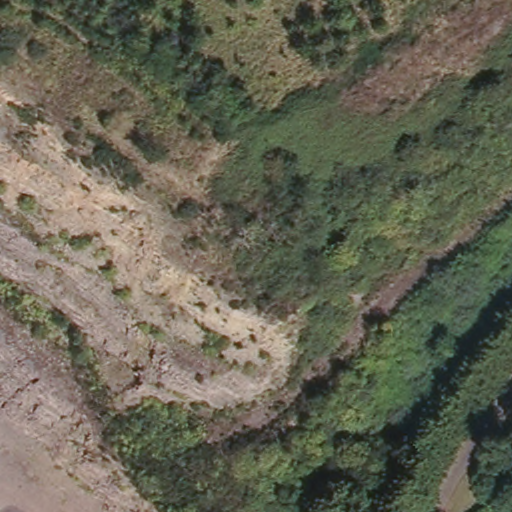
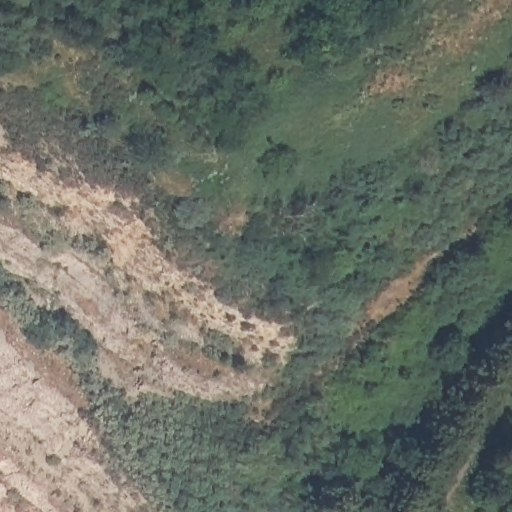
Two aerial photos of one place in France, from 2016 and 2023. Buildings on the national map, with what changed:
unchanged [(512,511),(512,512),(491,512),(502,501),(512,511)]

